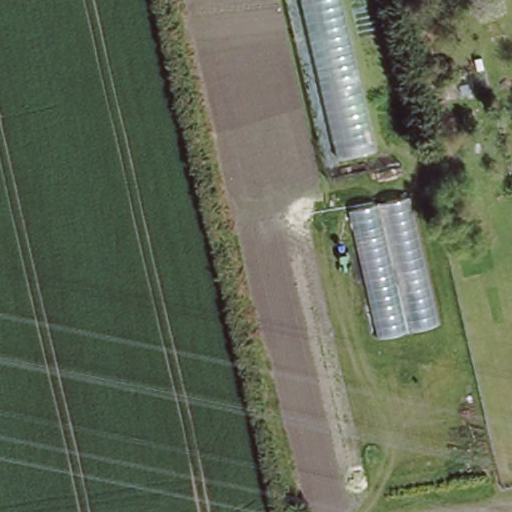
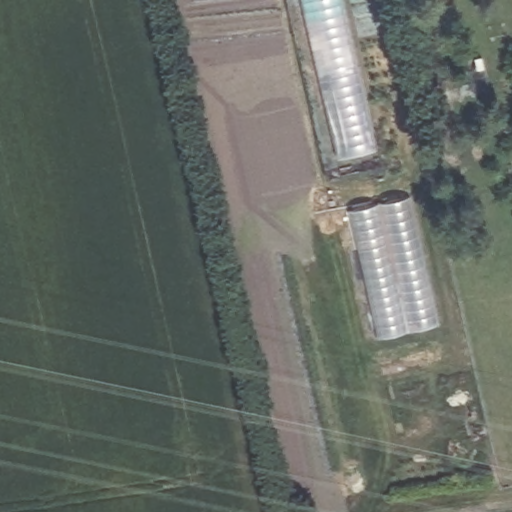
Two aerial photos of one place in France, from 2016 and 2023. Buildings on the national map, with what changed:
unchanged [(337,160),(301,0),(342,0),(376,151),(337,160)]
unchanged [(408,195),(439,325),(378,337),(348,207),(408,195)]

